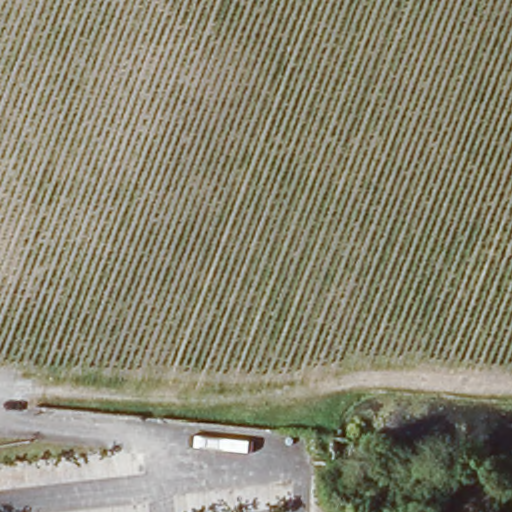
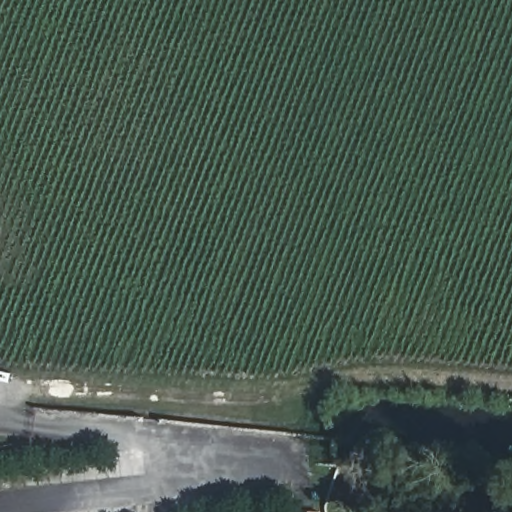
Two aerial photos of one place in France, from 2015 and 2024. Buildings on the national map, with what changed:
[]

